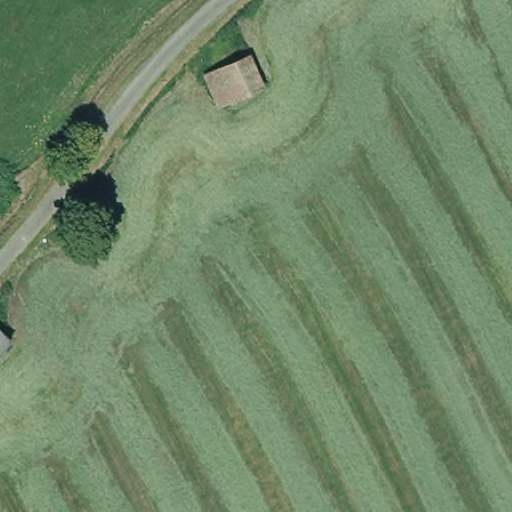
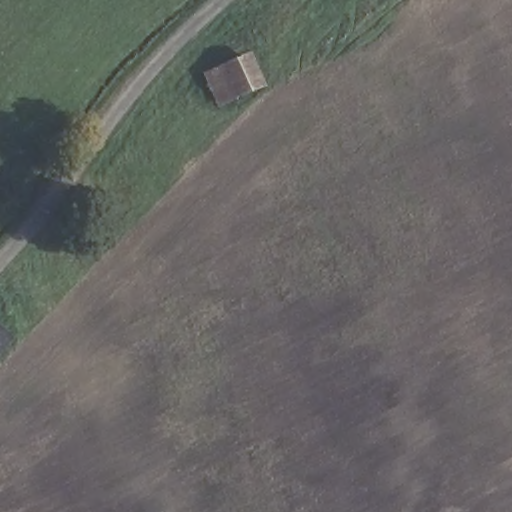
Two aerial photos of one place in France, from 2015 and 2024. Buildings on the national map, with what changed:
unchanged [(201,72),(250,55),(260,91),(214,107),(201,72)]
unchanged [(15,345),(0,359),(0,332),(15,345)]

